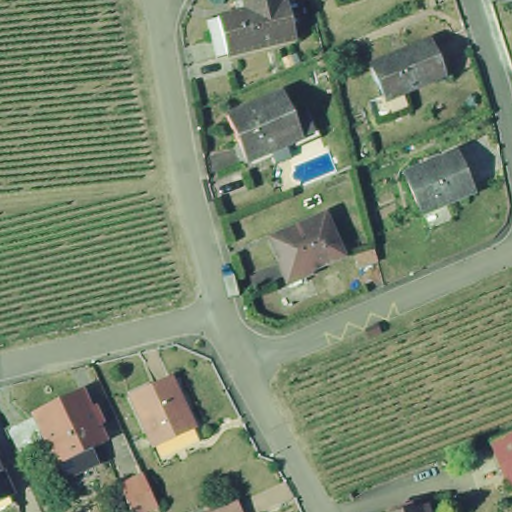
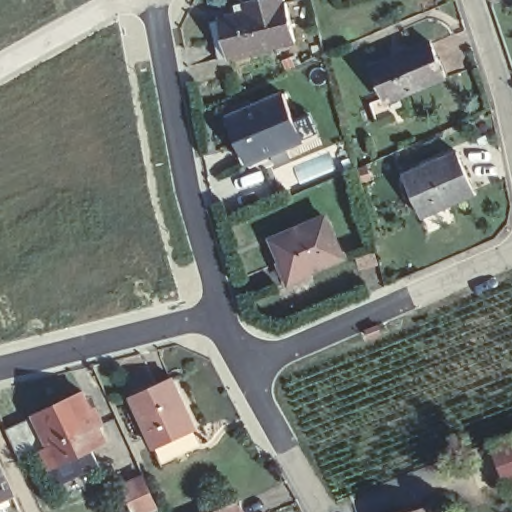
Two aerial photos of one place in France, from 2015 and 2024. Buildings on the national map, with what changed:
unchanged [(211,22),(231,17),(229,6),(239,4),(252,0),(276,0),(277,5),(290,44),(220,62),(211,64),(201,25),(211,22)]
unchanged [(441,82),(380,106),(366,70),(426,46),(441,82)]
unchanged [(299,138),(242,162),(222,116),(279,92),(299,138)]
unchanged [(464,200),(411,221),(394,177),(447,157),(464,200)]
unchanged [(337,261),(284,282),(266,244),(319,221),(337,261)]
unchanged [(186,432),(144,452),(120,400),(162,381),(186,432)]
unchanged [(52,460),(45,463),(35,443),(14,453),(1,424),(29,411),(28,408),(76,386),(101,436),(86,443),(93,457),(59,474),(52,460)]
unchanged [(512,433),(512,485),(495,440),(512,433)]
unchanged [(145,508),(137,512),(133,512),(122,487),(145,478),(156,503),(145,508)]
unchanged [(0,496),(0,490),(2,495),(0,496)]
unchanged [(414,512),(418,511),(418,512),(414,512)]

